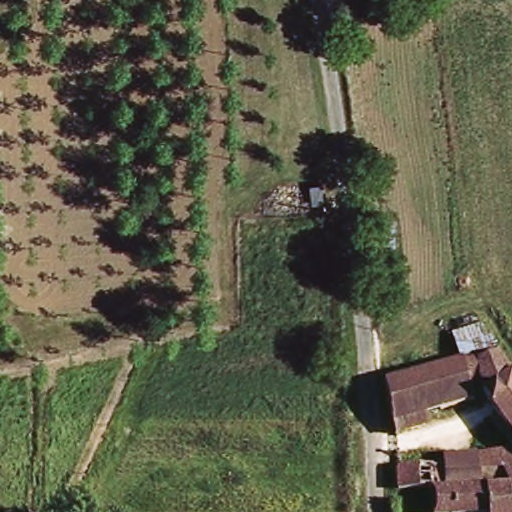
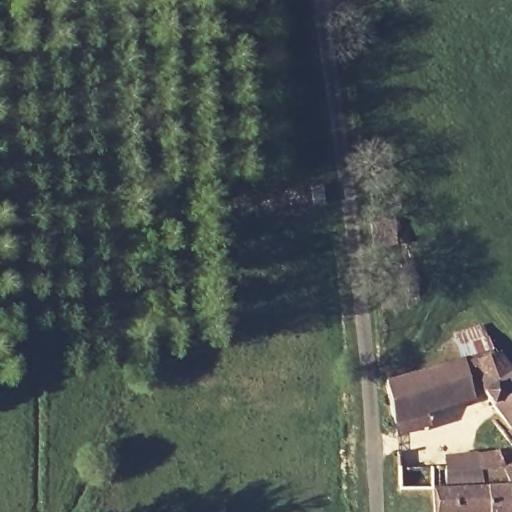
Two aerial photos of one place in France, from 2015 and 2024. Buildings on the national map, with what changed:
unchanged [(495,352),(512,375),(512,433),(479,391),(469,395),(471,398),(388,424),(378,382),(454,358),(447,337),(478,327),(489,354),(495,352)]
unchanged [(393,470),(442,468),(442,459),(475,453),(477,458),(512,450),(512,483),(427,489),(394,492),(393,470)]
unchanged [(512,483),(512,512),(429,512),(427,489),(512,483)]

